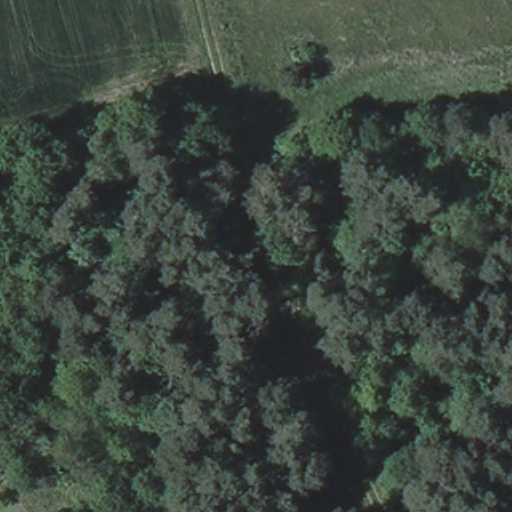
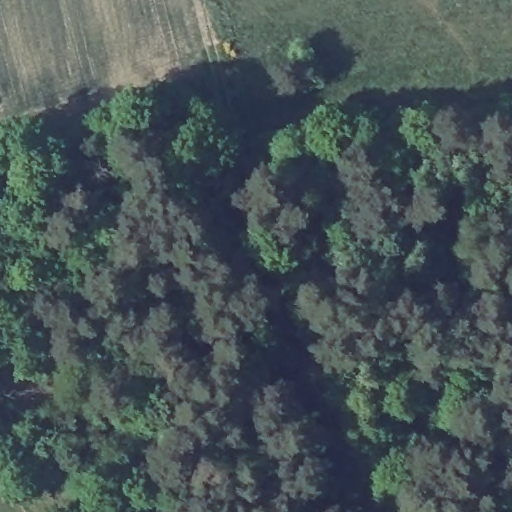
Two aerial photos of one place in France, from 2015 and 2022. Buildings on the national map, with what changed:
unchanged [(301,50),(308,84),(288,88),(282,49),(301,50)]

